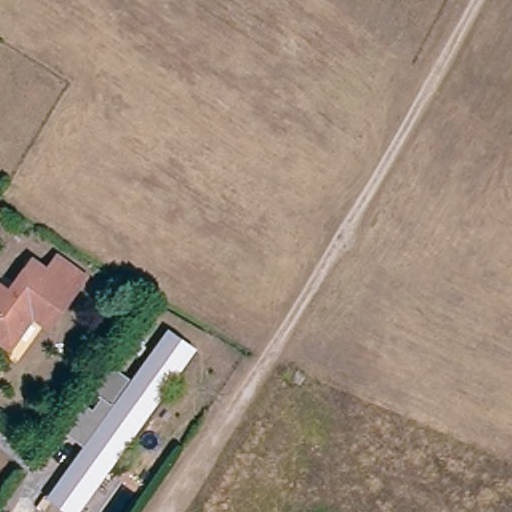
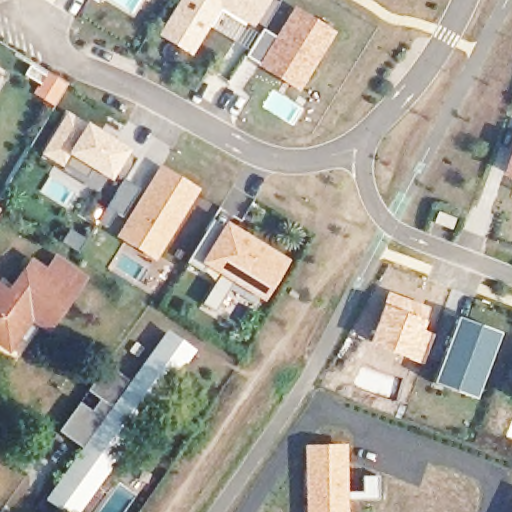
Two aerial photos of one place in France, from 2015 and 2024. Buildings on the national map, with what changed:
new [(180,0),(274,0),(280,3),(267,26),(258,21),(255,27),(222,9),(193,55),(158,35),(180,0)]
new [(334,32),(300,89),(262,65),(297,9),(334,32)]
new [(70,115),(140,158),(127,178),(114,170),(112,175),(96,165),(88,178),(47,153),(70,115)]
new [(512,143),(512,178),(500,174),(512,143)]
new [(156,255),(124,235),(164,170),(196,191),(156,255)]
new [(458,219),(454,229),(437,222),(441,212),(458,219)]
new [(227,220),(290,260),(265,302),(234,283),(217,310),(205,301),(222,276),(207,266),(204,272),(188,262),(215,220),(224,225),(227,220)]
unchanged [(0,289),(6,293),(30,261),(71,292),(45,327),(41,325),(11,364),(0,356),(0,289)]
new [(386,291),(430,308),(422,329),(433,333),(421,365),(366,342),(386,291)]
new [(453,389),(436,383),(448,351),(460,318),(502,333),(481,390),(477,398),(453,389)]
unchanged [(55,486),(133,376),(140,368),(165,331),(189,348),(163,385),(156,393),(79,502),(72,512),(65,512),(46,498),(55,486)]
unchanged [(126,377),(108,404),(86,388),(105,361),(126,377)]
new [(511,399),(512,395),(512,400),(511,399)]
new [(347,443),(348,512),(305,512),(304,444),(347,443)]

